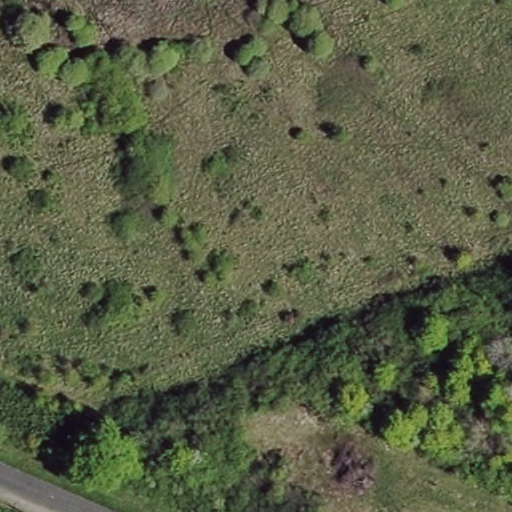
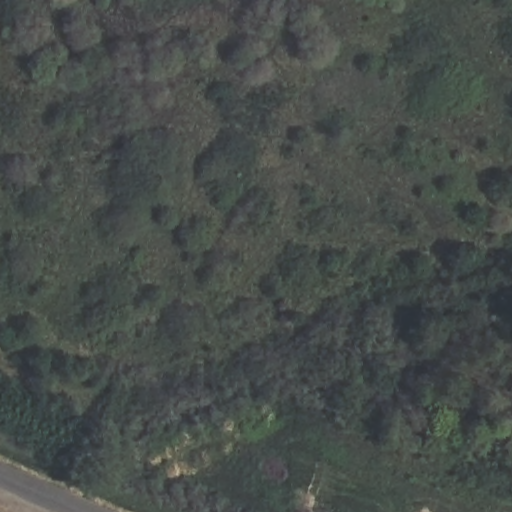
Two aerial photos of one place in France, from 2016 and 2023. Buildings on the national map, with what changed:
[]

